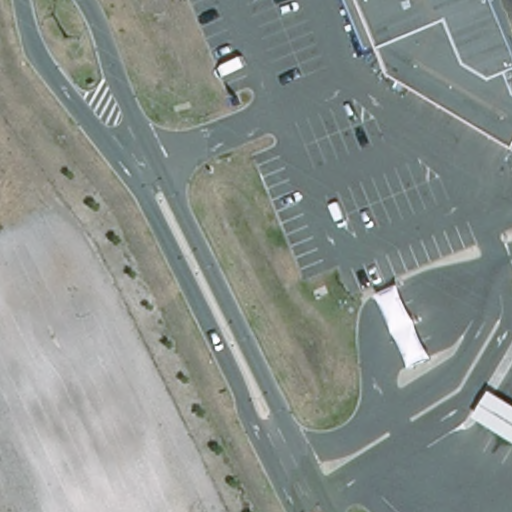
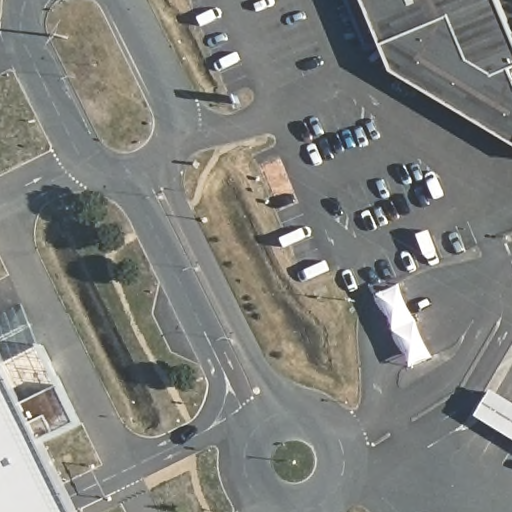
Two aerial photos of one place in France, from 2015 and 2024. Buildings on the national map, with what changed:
unchanged [(394,72),(382,44),(369,49),(350,0),(498,0),(512,32),(512,142),(394,72)]
new [(42,346),(80,425),(42,443),(78,512),(0,512),(0,353),(5,365),(42,346)]
unchanged [(478,416),(494,389),(512,400),(512,438),(478,416)]

